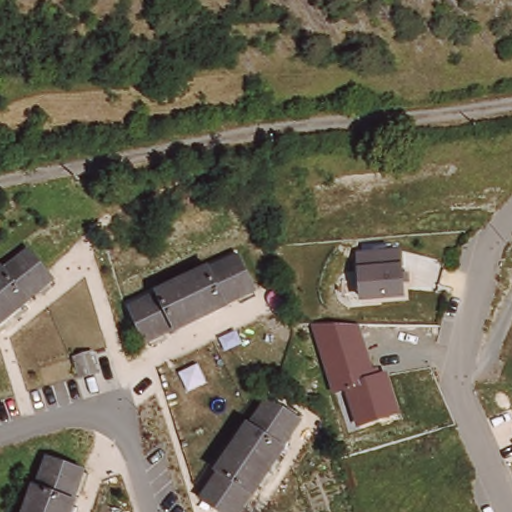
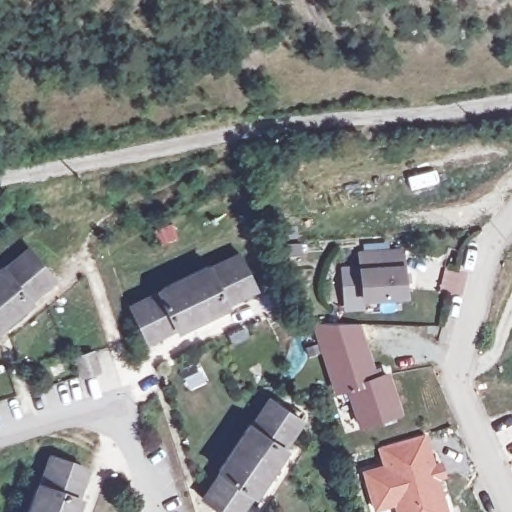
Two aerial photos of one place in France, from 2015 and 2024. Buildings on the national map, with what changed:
demolished [(79,209),(67,212),(65,203),(77,201),(79,209)]
unchanged [(406,297),(362,299),(360,252),(403,250),(406,297)]
unchanged [(162,294),(162,291),(211,268),(212,270),(242,256),(255,288),(227,302),(228,306),(179,329),(177,327),(147,341),(133,308),(162,294)]
unchanged [(25,257),(48,286),(22,307),(24,311),(4,327),(0,322),(0,276),(25,257)]
unchanged [(4,327),(0,330),(0,322),(4,327)]
unchanged [(357,427),(347,391),(337,395),(315,323),(364,323),(379,373),(390,370),(403,415),(357,427)]
unchanged [(92,380),(85,360),(103,353),(110,374),(92,380)]
unchanged [(285,450),(287,452),(255,498),(252,497),(242,512),(220,512),(204,502),(222,477),(219,474),(251,428),(254,430),(272,403),(302,425),(285,450)]
demolished [(68,445),(74,430),(102,440),(97,455),(68,445)]
new [(377,512),(375,512),(362,471),(385,465),(378,448),(427,433),(437,464),(442,462),(447,477),(440,481),(449,512),(397,512),(396,507),(377,512)]
unchanged [(35,490),(47,459),(82,472),(70,503),(74,504),(71,512),(25,512),(33,489),(35,490)]

